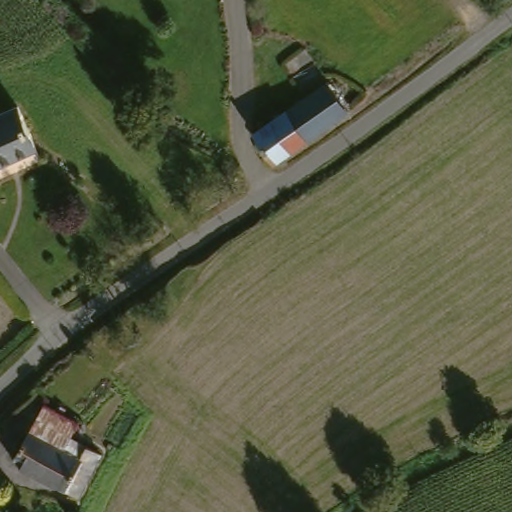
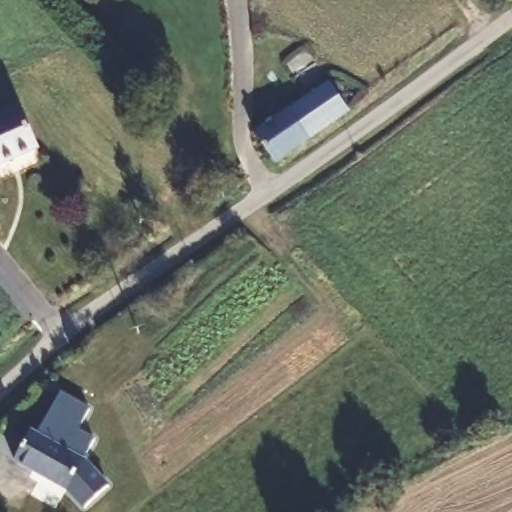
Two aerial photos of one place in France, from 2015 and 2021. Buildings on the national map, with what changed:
unchanged [(260,130),(333,81),(353,110),(280,159),(260,130)]
unchanged [(0,165),(0,116),(28,105),(44,147),(0,165)]
unchanged [(85,420),(71,445),(86,453),(93,442),(107,450),(86,493),(20,457),(50,403),(85,420)]

